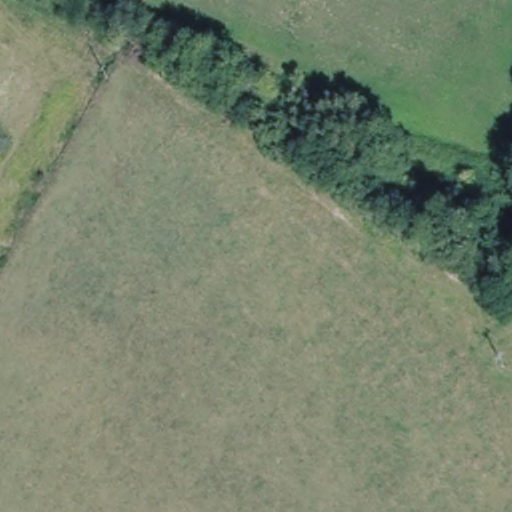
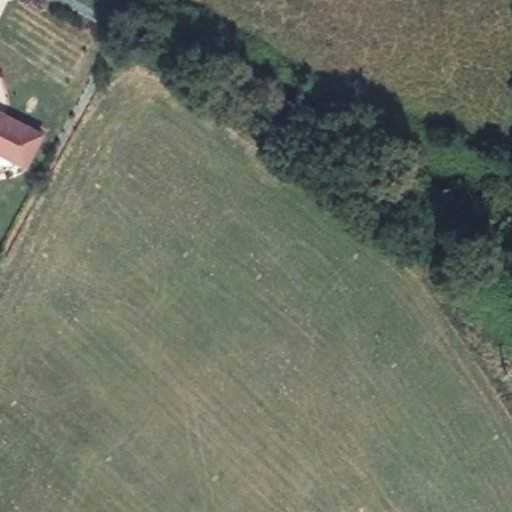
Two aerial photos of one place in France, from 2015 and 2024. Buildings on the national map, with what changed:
new [(4,111),(40,130),(23,163),(0,151),(0,109),(4,111)]

